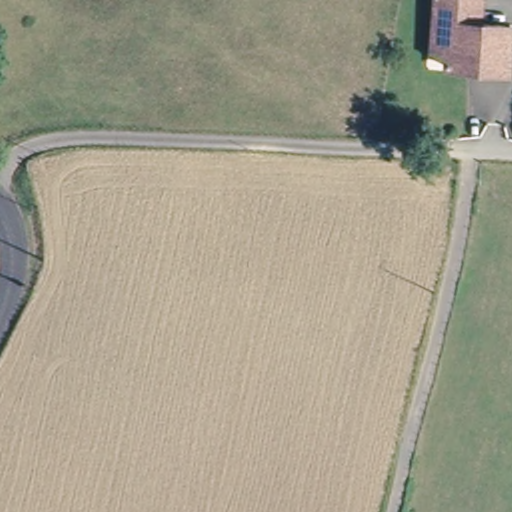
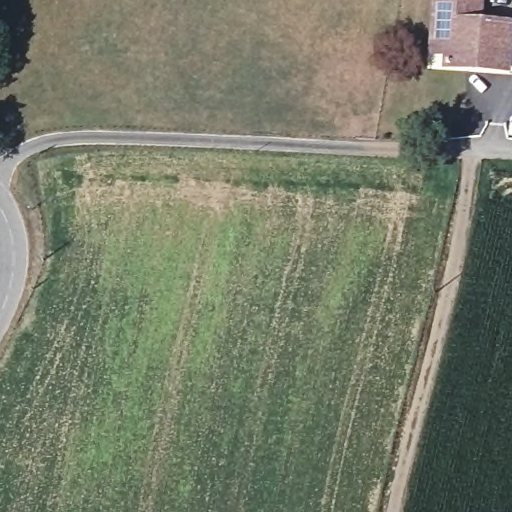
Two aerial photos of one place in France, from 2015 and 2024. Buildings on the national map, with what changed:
unchanged [(433,20),(433,0),(483,0),(483,21),(509,23),(512,23),(512,70),(497,69),(446,67),(447,46),(431,45),(433,20)]

